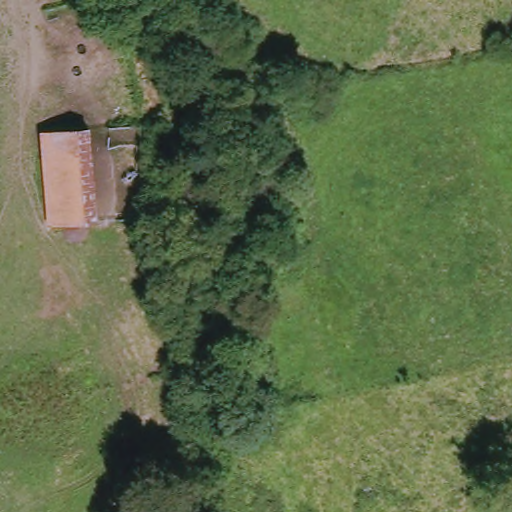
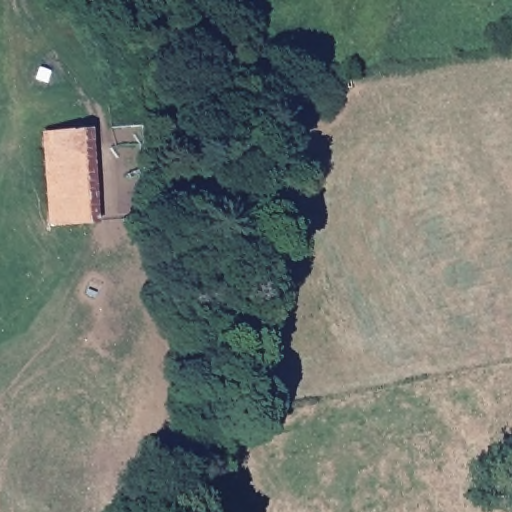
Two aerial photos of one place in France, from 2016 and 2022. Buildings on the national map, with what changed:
unchanged [(33,132),(80,123),(97,215),(52,223),(33,132)]

